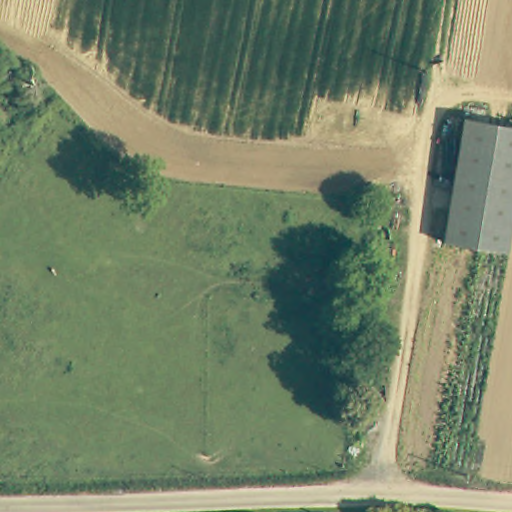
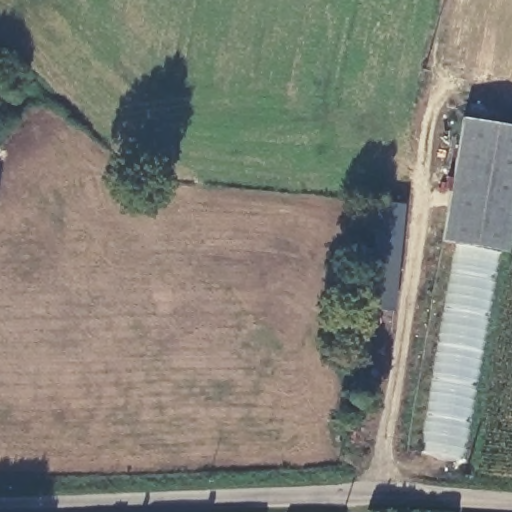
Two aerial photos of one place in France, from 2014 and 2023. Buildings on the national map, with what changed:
unchanged [(502,255),(439,243),(462,119),(512,127),(512,203),(502,255)]
new [(394,311),(364,308),(377,200),(404,203),(394,311)]
new [(468,461),(423,452),(458,247),(502,255),(468,461)]

